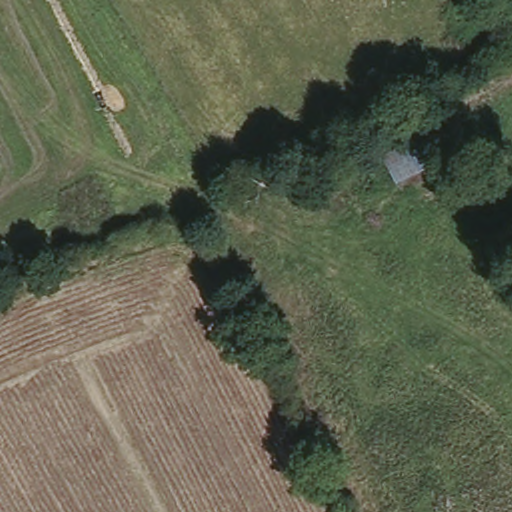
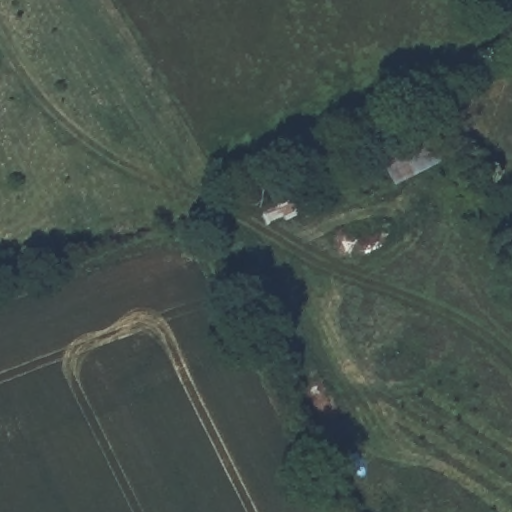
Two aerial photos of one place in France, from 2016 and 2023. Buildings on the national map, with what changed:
unchanged [(379,155),(426,129),(443,161),(395,187),(379,155)]

